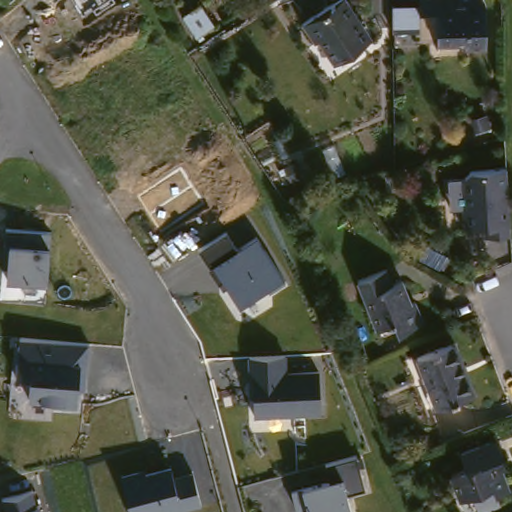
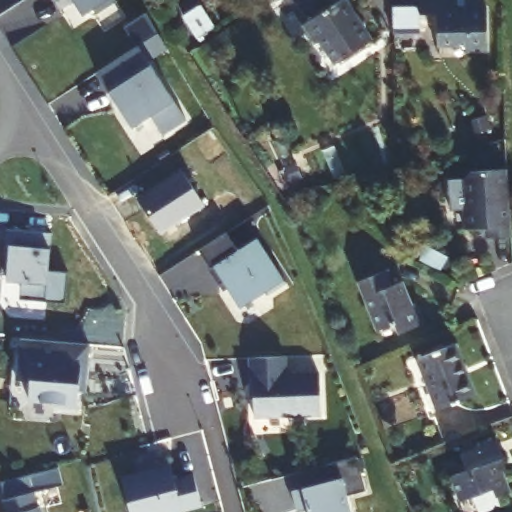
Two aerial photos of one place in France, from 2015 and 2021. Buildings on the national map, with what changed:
unchanged [(62,0),(55,4),(52,0),(62,0)]
unchanged [(94,11),(84,18),(72,0),(114,0),(116,4),(97,16),(94,11)]
unchanged [(451,11),(462,10),(462,0),(474,0),(481,11),(481,56),(465,56),(465,50),(435,50),(435,19),(416,19),(416,33),(386,34),(386,10),(416,10),(416,1),(450,0),(451,11)]
unchanged [(345,5),(374,44),(345,66),(327,42),(316,50),(305,33),(345,5)]
unchanged [(205,7),(217,25),(206,34),(194,16),(205,7)]
new [(159,35),(168,51),(149,63),(185,121),(162,137),(151,118),(131,129),(97,75),(139,48),(159,35)]
unchanged [(181,172),(203,209),(159,236),(137,200),(181,172)]
unchanged [(504,174),(506,235),(465,238),(464,174),(504,174)]
unchanged [(11,246),(1,242),(4,230),(50,236),(49,254),(49,285),(5,277),(11,246)]
unchanged [(195,248),(225,231),(240,250),(257,239),(282,280),(235,306),(195,248)]
unchanged [(386,271),(390,283),(398,280),(406,304),(414,302),(422,323),(397,333),(392,323),(375,330),(356,281),(386,271)]
unchanged [(31,362),(18,337),(26,333),(97,343),(95,361),(83,362),(81,407),(30,399),(31,362)]
unchanged [(454,344),(475,394),(437,409),(417,358),(454,344)]
unchanged [(249,359),(288,357),(290,370),(317,369),(321,415),(251,413),(249,359)]
unchanged [(468,470),(464,458),(495,445),(503,461),(497,465),(509,490),(495,496),(497,502),(476,511),(470,500),(461,503),(451,478),(468,470)]
unchanged [(326,481),(320,462),(353,455),(365,490),(345,494),(352,512),(303,512),(298,491),(326,481)]
unchanged [(167,465),(173,476),(190,471),(200,503),(168,512),(130,512),(122,481),(167,465)]
unchanged [(2,500),(26,494),(33,512),(5,512),(2,500)]

